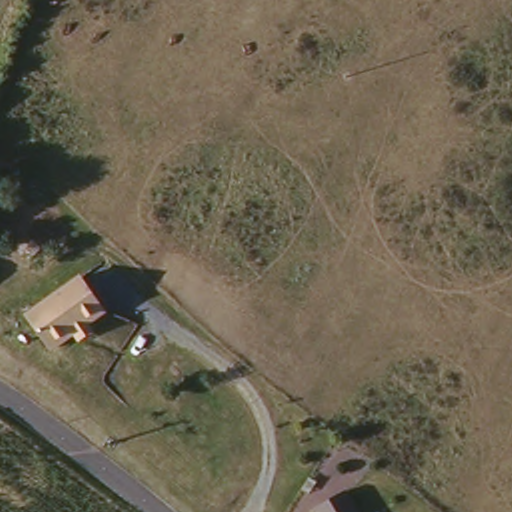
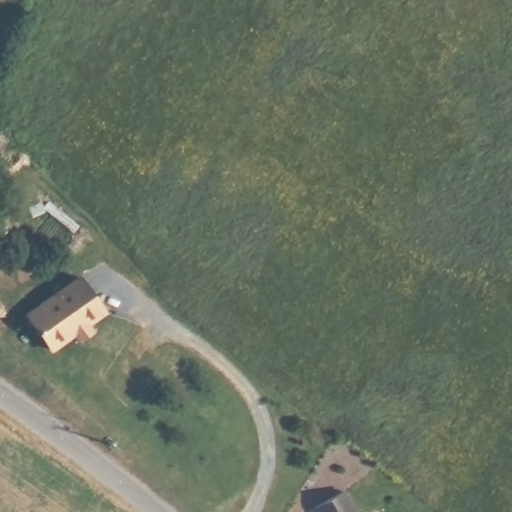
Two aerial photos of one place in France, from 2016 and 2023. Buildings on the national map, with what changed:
unchanged [(84,343),(79,335),(56,351),(32,317),(86,279),(111,314),(92,327),(97,334),(84,343)]
unchanged [(318,512),(316,507),(345,491),(357,512),(318,512)]

